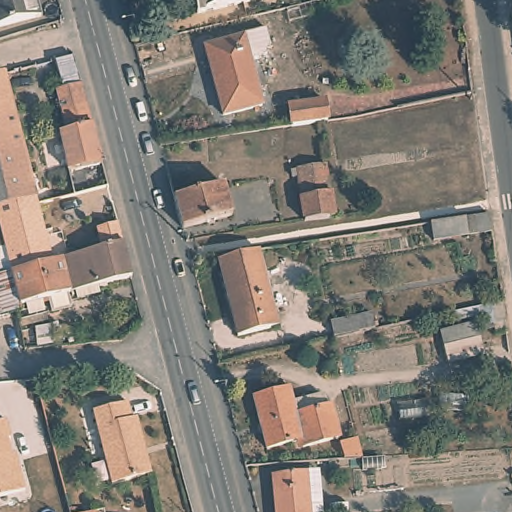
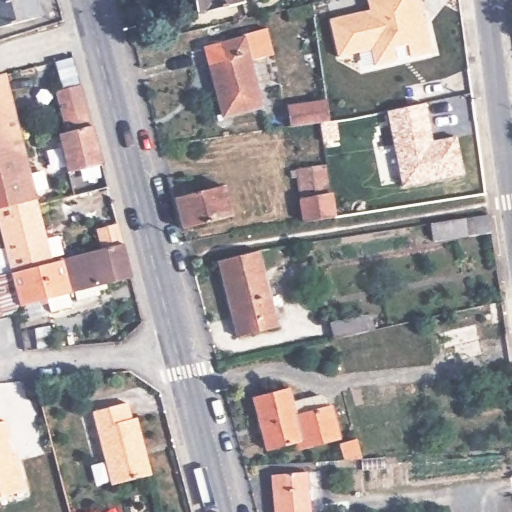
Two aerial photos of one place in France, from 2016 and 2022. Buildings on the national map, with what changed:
unchanged [(0,28),(0,0),(37,0),(42,16),(0,28)]
unchanged [(246,4),(200,15),(196,0),(245,0),(246,4)]
new [(329,19),(368,9),(366,0),(420,0),(432,52),(412,57),(408,45),(393,48),(396,61),(376,66),(372,51),(338,57),(329,19)]
unchanged [(271,41),(267,53),(252,57),(265,105),(227,116),(209,47),(246,38),(246,34),(268,30),(271,41)]
unchanged [(102,165),(67,172),(57,135),(64,132),(61,122),(52,91),(80,81),(102,165)]
unchanged [(26,198),(0,204),(0,95),(19,171),(26,198)]
unchanged [(291,107),(325,101),(328,121),(318,122),(293,126),(291,107)]
new [(426,102),(433,140),(458,135),(465,174),(402,186),(387,111),(426,102)]
unchanged [(305,223),(297,179),(293,179),(292,172),(297,171),(297,167),(326,164),(333,210),(339,209),(341,218),(334,219),(305,223)]
unchanged [(232,216),(183,229),(175,197),(171,182),(206,174),(210,189),(225,186),(232,216)]
unchanged [(6,272),(1,273),(0,272),(0,204),(26,198),(27,206),(41,263),(6,272)]
unchanged [(478,220),(480,237),(446,242),(443,225),(478,220)]
unchanged [(122,278),(85,287),(86,296),(66,301),(62,293),(26,302),(19,277),(7,278),(6,272),(41,263),(113,245),(122,278)]
unchanged [(277,329),(237,338),(219,264),(258,254),(277,329)]
new [(22,312),(0,317),(0,272),(1,273),(6,272),(7,278),(19,277),(26,302),(19,303),(22,312)]
unchanged [(338,320),(362,315),(366,330),(341,336),(338,320)]
unchanged [(477,321),(482,352),(447,360),(443,328),(477,321)]
unchanged [(286,386),(290,400),(316,393),(322,396),(326,405),(329,403),(337,433),(303,445),(300,437),(262,447),(248,396),(286,386)]
unchanged [(135,416),(141,415),(157,471),(113,483),(94,412),(131,400),(135,416)]
unchanged [(0,425),(7,423),(12,441),(9,442),(16,464),(18,463),(25,490),(20,491),(0,497),(0,425)]
unchanged [(312,467),(318,512),(283,512),(278,470),(312,467)]
unchanged [(80,512),(61,512),(60,506),(65,505),(77,502),(80,512)]

